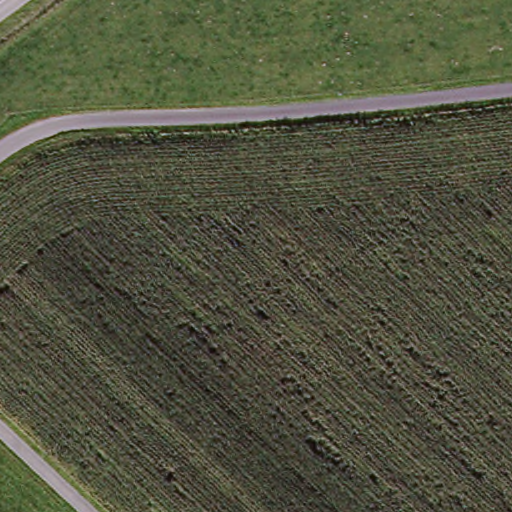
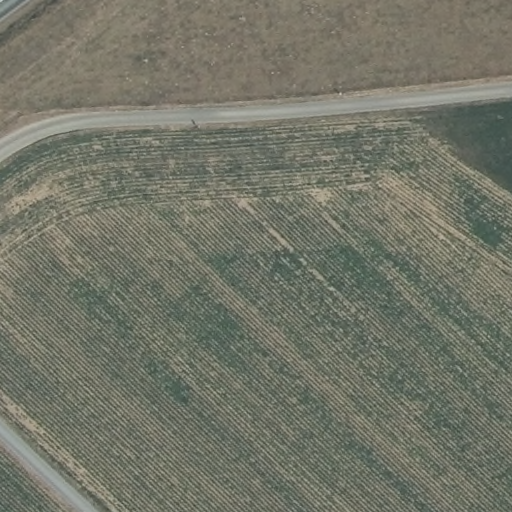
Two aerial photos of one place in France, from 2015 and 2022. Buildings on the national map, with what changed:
[]

